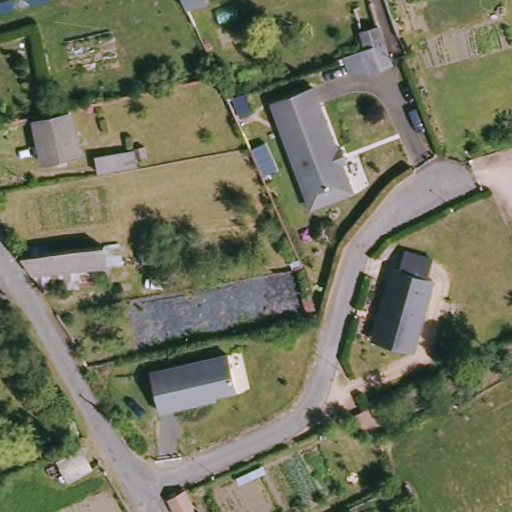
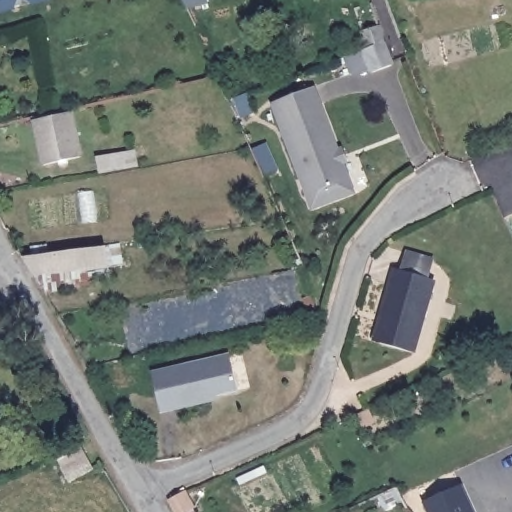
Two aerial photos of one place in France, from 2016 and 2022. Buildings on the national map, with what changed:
new [(51,0),(0,13),(0,0),(51,0)]
unchanged [(379,26),(384,42),(366,49),(361,32),(379,26)]
unchanged [(384,42),(393,65),(370,74),(351,75),(345,58),(362,52),(384,42)]
unchanged [(312,211),(308,201),(273,104),(314,89),(350,186),(353,196),(312,211)]
unchanged [(45,162),(37,118),(73,111),(81,154),(45,162)]
unchanged [(135,149),(137,166),(119,169),(100,172),(97,156),(111,153),(135,149)]
unchanged [(45,291),(30,254),(106,244),(122,245),(128,265),(109,270),(113,282),(45,291)]
unchanged [(391,310),(405,264),(410,266),(415,247),(444,256),(438,274),(443,276),(422,348),(390,338),(383,337),(391,310)]
unchanged [(156,373),(236,357),(243,392),(213,398),(214,402),(163,412),(156,373)]
unchanged [(91,470),(69,481),(54,452),(77,441),(91,470)]
new [(461,485),(474,512),(427,512),(422,502),(461,485)]
unchanged [(185,490),(185,491),(194,503),(182,512),(177,512),(169,500),(185,490)]

